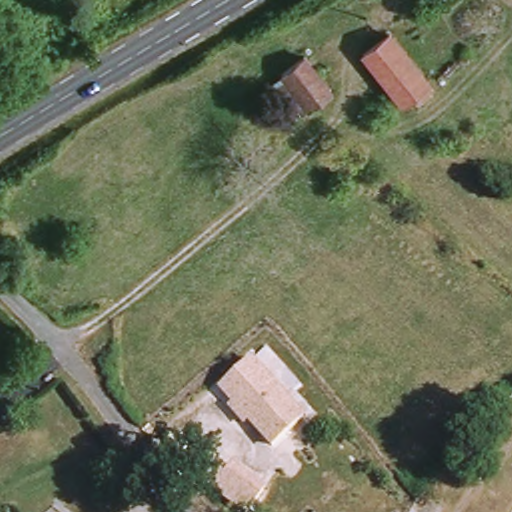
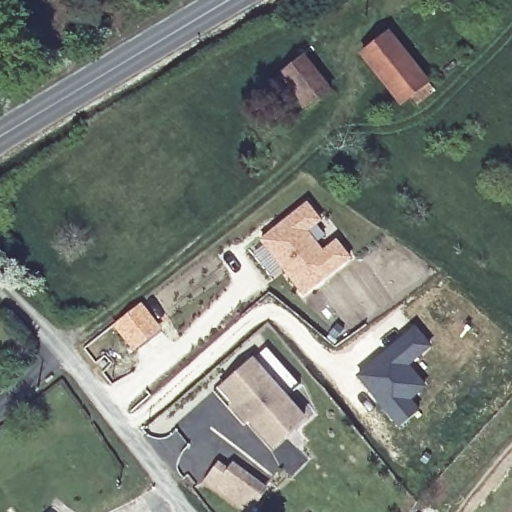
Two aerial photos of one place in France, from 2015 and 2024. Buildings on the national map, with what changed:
unchanged [(369,1),(367,0),(371,0),(369,1)]
unchanged [(431,85),(428,87),(432,94),(418,105),(410,95),(399,102),(361,54),(388,33),(431,85)]
unchanged [(326,99),(300,119),(275,84),(299,63),(326,99)]
new [(322,220),(309,230),(323,250),(337,238),(349,256),(304,292),(260,240),(307,202),(322,220)]
new [(400,426),(356,375),(414,325),(432,345),(409,364),(427,386),(412,398),(419,410),(400,426)]
unchanged [(229,409),(233,405),(220,391),(250,363),(303,420),(272,448),(249,423),(245,426),(229,409)]
unchanged [(207,485),(219,467),(229,475),(217,492),(207,485)]

